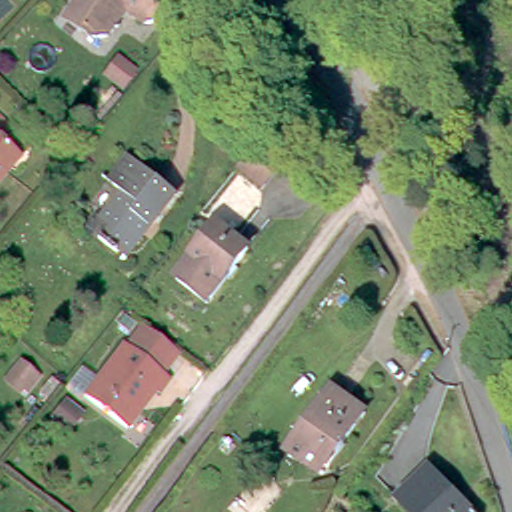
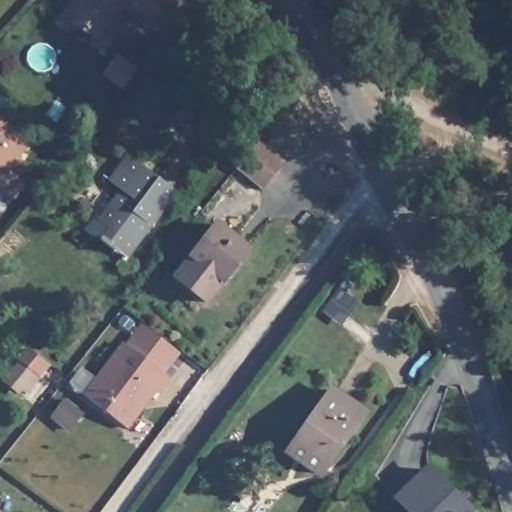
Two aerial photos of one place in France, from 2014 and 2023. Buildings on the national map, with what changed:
unchanged [(169,0),(155,20),(144,22),(127,10),(109,35),(95,38),(82,29),(67,17),(69,13),(78,0),(169,0)]
unchanged [(135,70),(123,86),(112,77),(123,61),(135,70)]
unchanged [(10,136),(26,150),(15,163),(0,180),(0,127),(10,136)]
unchanged [(284,163),(263,188),(238,167),(258,142),(284,163)]
unchanged [(118,253),(102,240),(100,243),(84,231),(97,213),(103,218),(123,192),(110,182),(131,156),(176,191),(132,249),(127,256),(120,250),(118,253)]
unchanged [(254,254),(212,307),(182,284),(223,230),(254,254)]
unchanged [(123,357),(138,337),(172,363),(157,383),(123,357)]
unchanged [(122,438),(80,405),(120,354),(123,357),(157,383),(167,389),(156,403),(152,400),(135,421),(122,438)]
unchanged [(22,389),(8,378),(22,363),(35,374),(22,389)]
unchanged [(367,418),(345,449),(345,450),(338,460),(334,456),(318,477),(290,457),(333,395),(367,418)]
unchanged [(399,509),(430,479),(462,512),(402,512),(399,509)]

